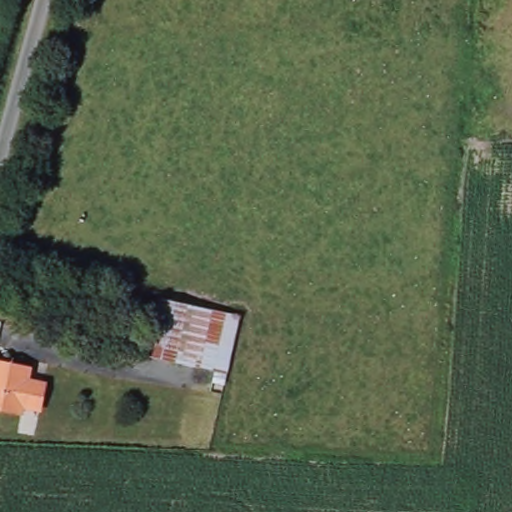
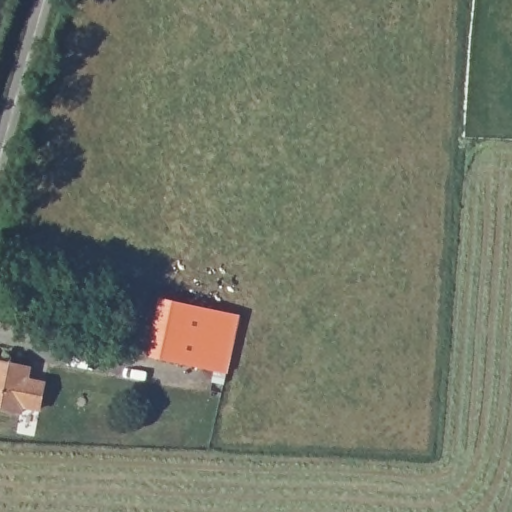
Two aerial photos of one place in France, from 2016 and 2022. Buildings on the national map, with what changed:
unchanged [(231,375),(152,357),(165,298),(240,315),(244,315),(231,375)]
unchanged [(45,410),(27,406),(26,414),(0,409),(0,361),(35,368),(32,380),(50,384),(45,410)]

